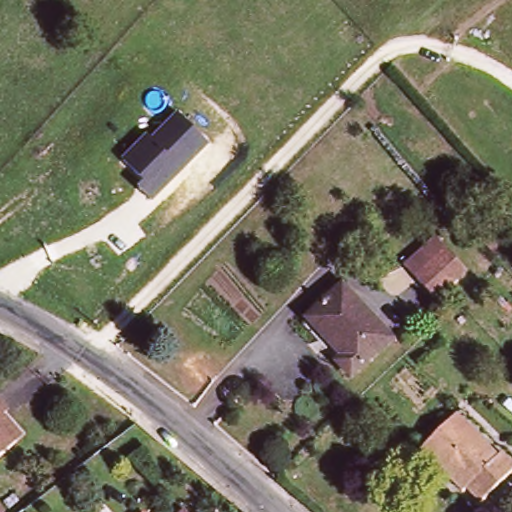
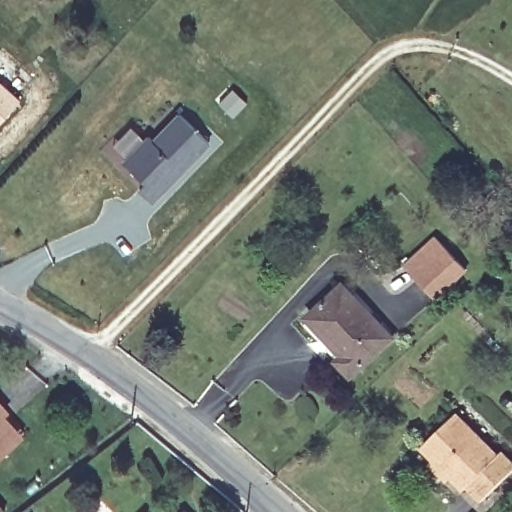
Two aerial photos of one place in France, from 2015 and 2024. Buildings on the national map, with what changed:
new [(0,121),(0,81),(20,101),(0,121)]
unchanged [(210,144),(150,204),(138,191),(143,185),(121,164),(149,134),(153,139),(178,111),(210,144)]
unchanged [(443,241),(472,273),(440,301),(410,270),(443,241)]
unchanged [(349,352),(316,316),(347,286),(398,339),(359,378),(341,362),(349,352)]
unchanged [(1,427),(20,448),(0,466),(0,402),(12,416),(1,427)]
unchanged [(429,451),(463,420),(505,462),(511,456),(512,457),(512,487),(491,509),(476,494),(472,496),(458,481),(452,487),(435,470),(441,464),(429,451)]

